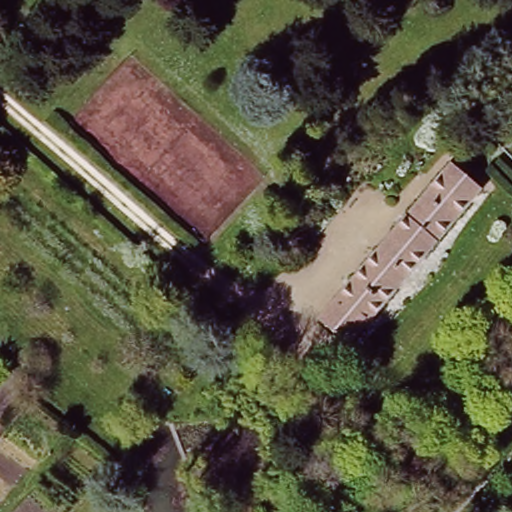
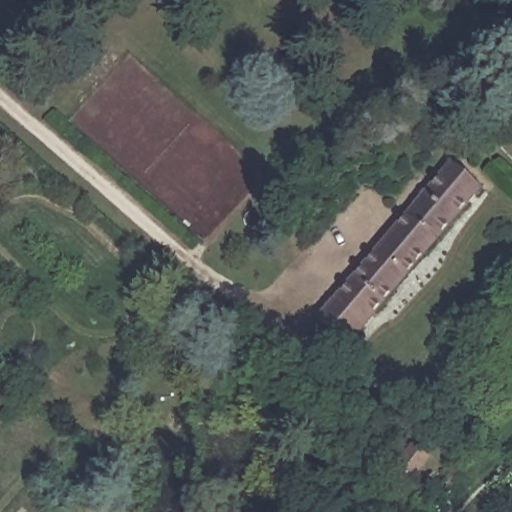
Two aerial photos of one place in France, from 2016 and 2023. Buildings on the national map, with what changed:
unchanged [(446,166),(479,194),(344,345),(313,318),(446,166)]
unchanged [(398,432),(415,447),(396,469),(379,454),(398,432)]

